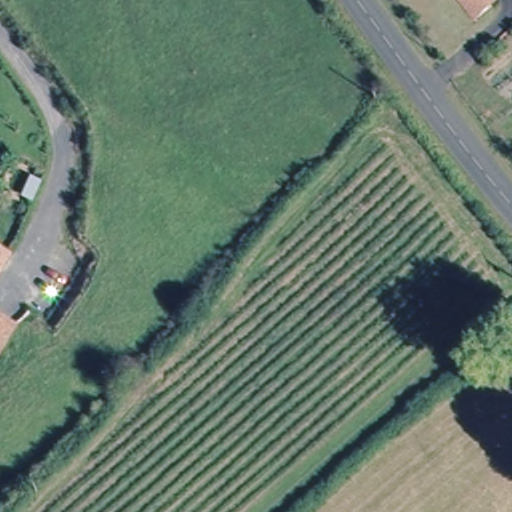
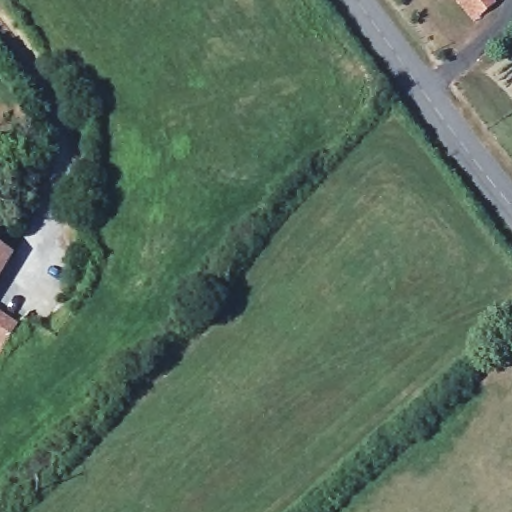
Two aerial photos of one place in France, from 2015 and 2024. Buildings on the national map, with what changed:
unchanged [(459,0),(487,0),(487,1),(471,14),(459,0)]
unchanged [(0,275),(0,257),(8,262),(0,275)]
unchanged [(0,354),(0,321),(14,329),(0,354)]

